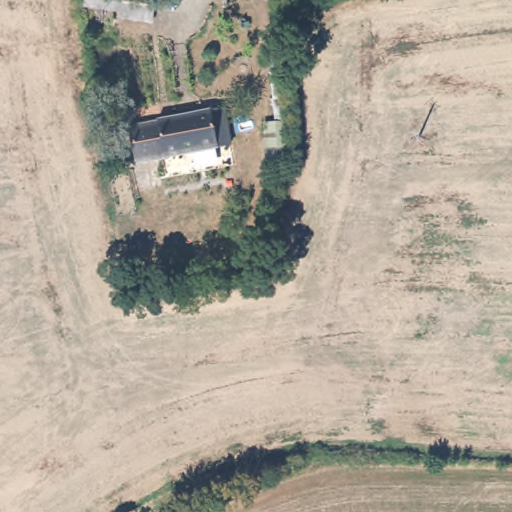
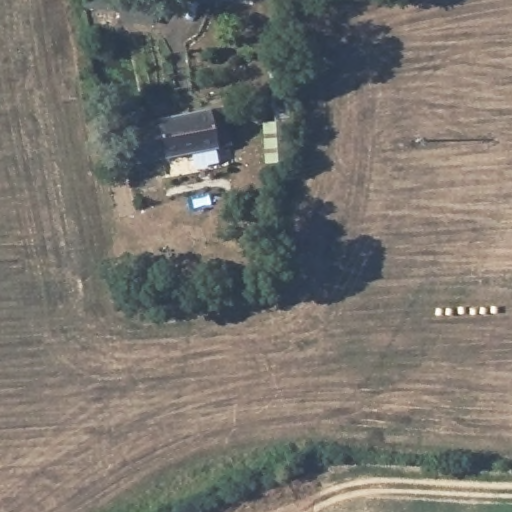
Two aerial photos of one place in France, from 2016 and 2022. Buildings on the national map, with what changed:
unchanged [(145,22),(145,24),(144,24),(127,21),(128,15),(94,10),(81,8),(83,0),(145,0),(148,0),(145,22)]
unchanged [(210,112),(216,149),(162,161),(160,162),(134,167),(129,131),(155,125),(210,112)]

